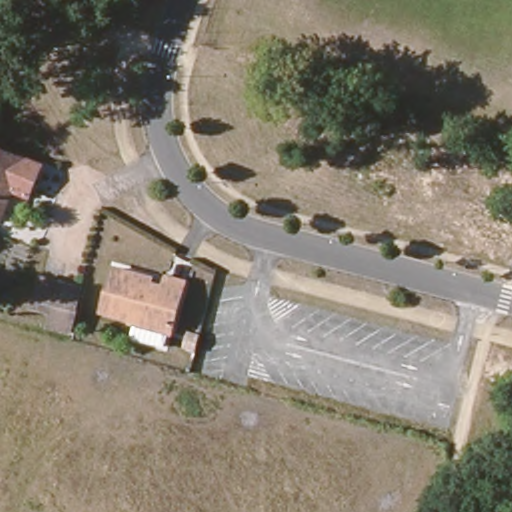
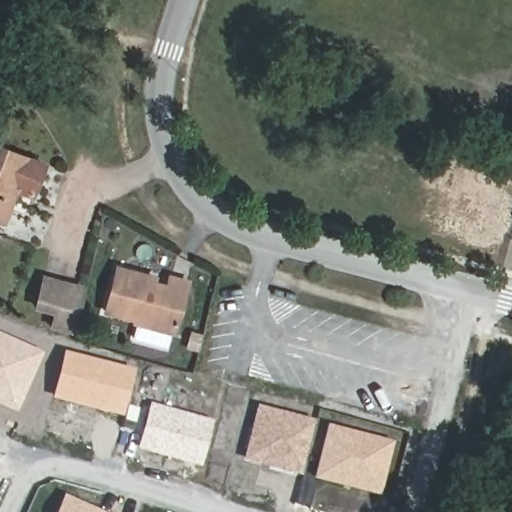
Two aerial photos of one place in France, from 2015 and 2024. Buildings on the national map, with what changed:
unchanged [(0,66),(0,54),(9,57),(5,68),(0,66)]
unchanged [(0,160),(0,148),(4,150),(0,160)]
unchanged [(19,191),(6,222),(0,220),(0,181),(4,171),(0,169),(0,160),(4,150),(47,166),(35,197),(19,191)]
unchanged [(0,181),(0,169),(4,171),(0,181)]
unchanged [(167,278),(185,283),(171,335),(132,324),(133,321),(104,313),(115,269),(143,276),(155,279),(154,285),(165,288),(167,278)]
unchanged [(77,310),(78,310),(72,335),(48,328),(51,314),(32,309),(40,277),(60,282),(82,288),(77,310)]
new [(0,333),(42,352),(15,413),(0,406),(0,333)]
unchanged [(205,352),(194,349),(199,333),(209,336),(205,352)]
new [(64,351),(135,369),(124,416),(51,398),(64,351)]
new [(150,402),(214,420),(201,466),(137,448),(150,402)]
new [(257,405),(315,419),(300,474),(242,460),(257,405)]
new [(328,423),(393,441),(380,495),(313,477),(328,423)]
new [(104,512),(57,512),(65,494),(104,512)]

